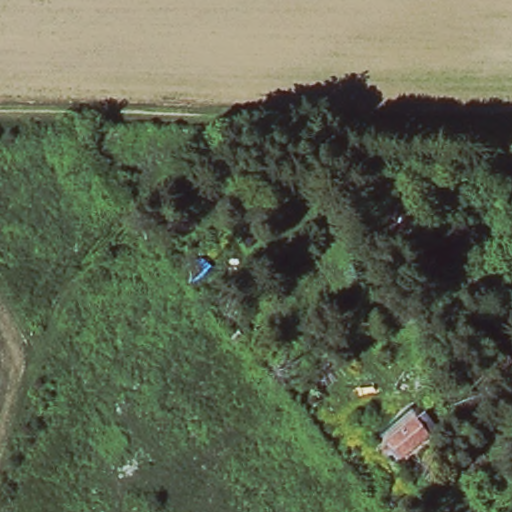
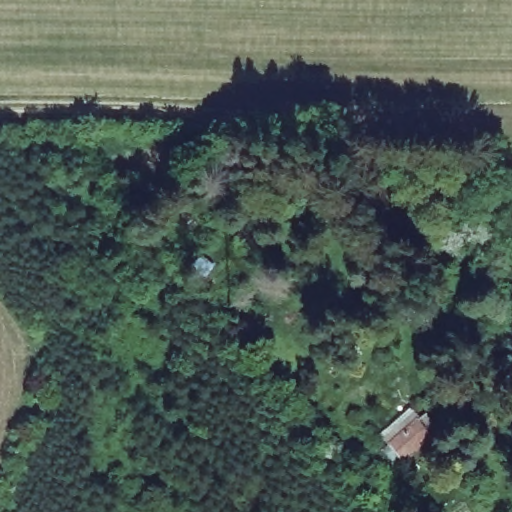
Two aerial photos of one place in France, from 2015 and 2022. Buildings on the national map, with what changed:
unchanged [(432,434),(402,460),(384,440),(417,416),(432,434)]

